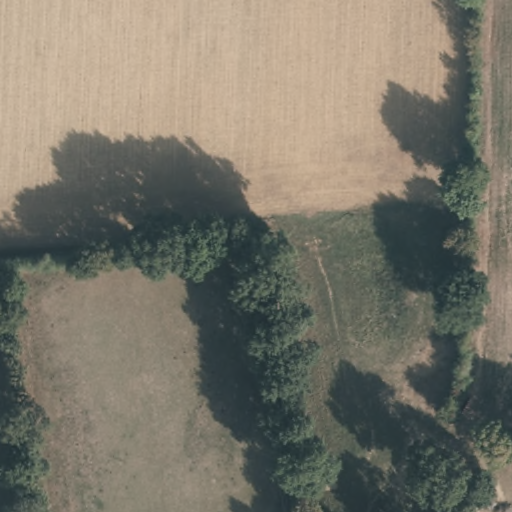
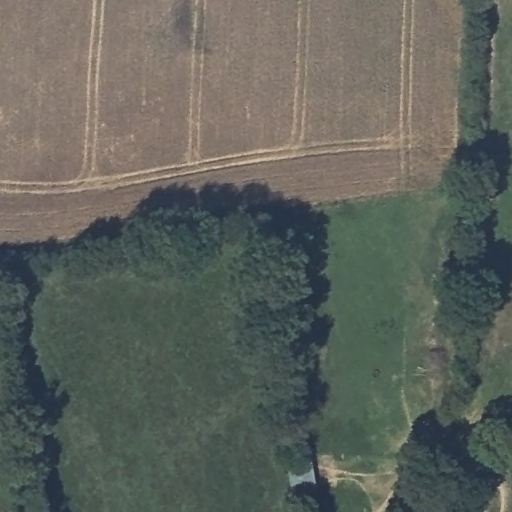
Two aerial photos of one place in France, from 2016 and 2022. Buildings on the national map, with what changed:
[]

